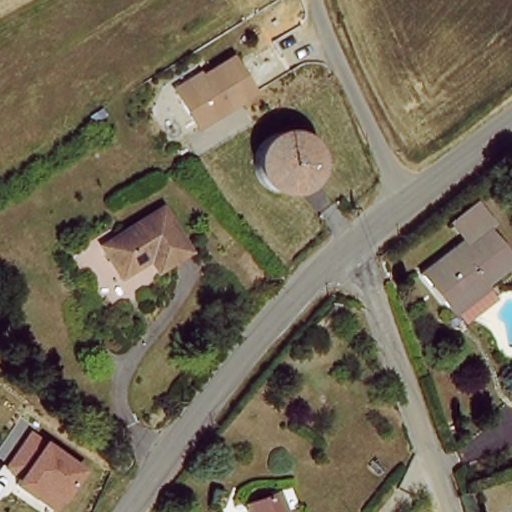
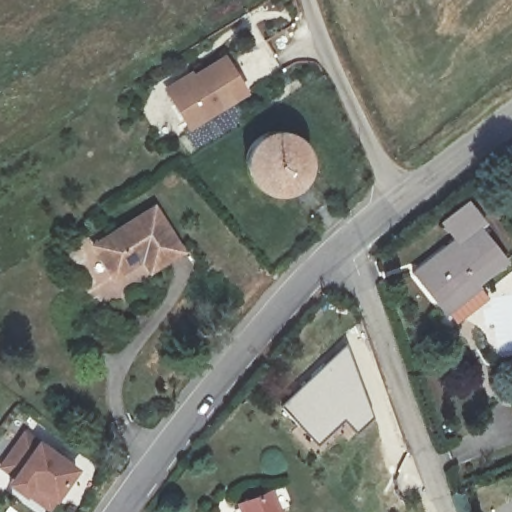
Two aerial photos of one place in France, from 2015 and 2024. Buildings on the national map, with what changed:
unchanged [(230,55),(250,97),(188,129),(165,87),(230,55)]
unchanged [(440,313),(409,273),(450,241),(435,222),(462,202),(479,224),(473,227),(501,263),(440,313)]
unchanged [(93,246),(156,206),(187,254),(156,273),(147,259),(114,279),(93,246)]
new [(340,349),(349,344),(374,416),(355,433),(343,420),(316,443),(278,404),(340,349)]
unchanged [(512,407),(512,412),(511,407),(512,407)]
unchanged [(7,483),(13,476),(1,467),(25,431),(40,440),(80,468),(56,501),(48,508),(7,483)]
unchanged [(237,505),(270,493),(276,512),(239,512),(237,505)]

